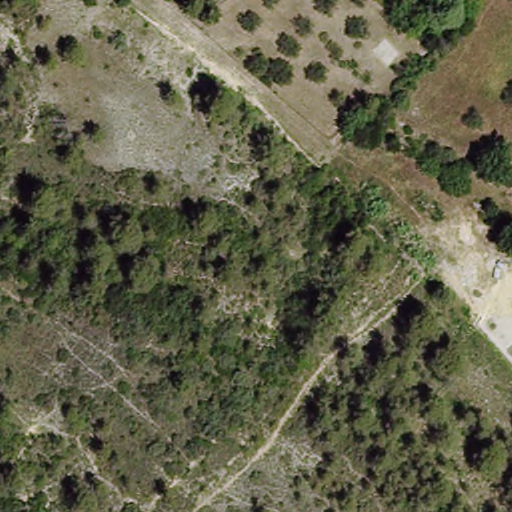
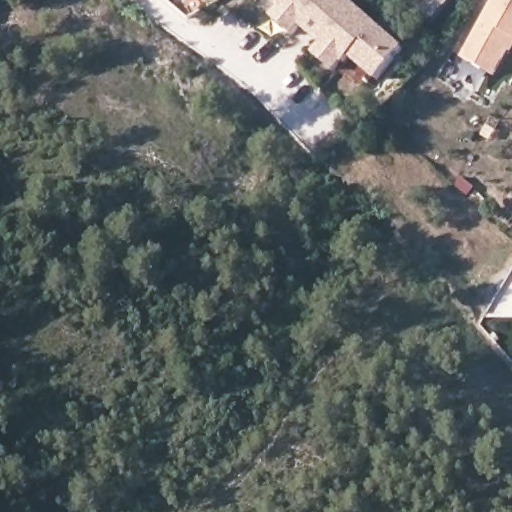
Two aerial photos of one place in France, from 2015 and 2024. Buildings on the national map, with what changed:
new [(404,48),(377,81),(348,58),(336,73),(314,55),(322,45),(300,28),(294,37),(271,18),(286,0),(349,0),(404,48)]
new [(430,21),(415,7),(421,0),(448,0),(430,21)]
new [(507,51),(494,77),(460,60),(494,0),(512,0),(512,51),(511,53),(507,51)]
demolished [(386,43),(399,59),(386,69),(373,54),(386,43)]

